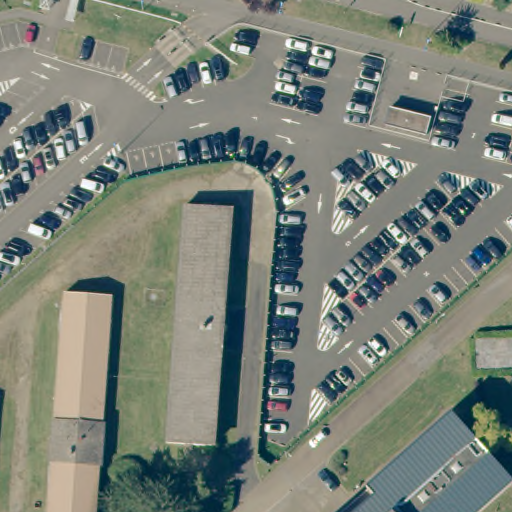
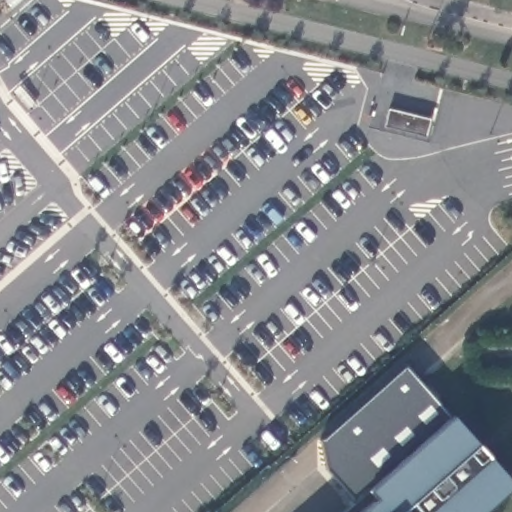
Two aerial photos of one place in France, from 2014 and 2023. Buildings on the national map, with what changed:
unchanged [(427,123),(423,140),(382,129),(386,112),(427,123)]
demolished [(208,449),(161,445),(180,208),(228,212),(208,449)]
demolished [(92,512),(42,512),(57,292),(107,295),(92,512)]
unchanged [(472,341),(512,335),(512,364),(475,364),(472,341)]
unchanged [(446,418),(507,487),(478,512),(339,512),(350,502),(446,418)]

